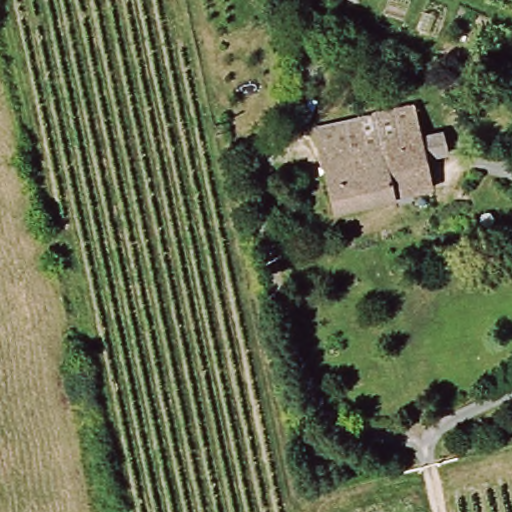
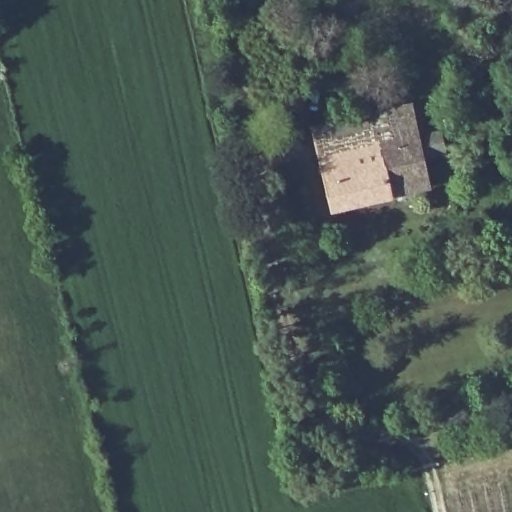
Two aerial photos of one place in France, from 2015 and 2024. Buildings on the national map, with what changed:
unchanged [(336,210),(319,130),(376,116),(375,113),(416,104),(434,187),(336,210)]

